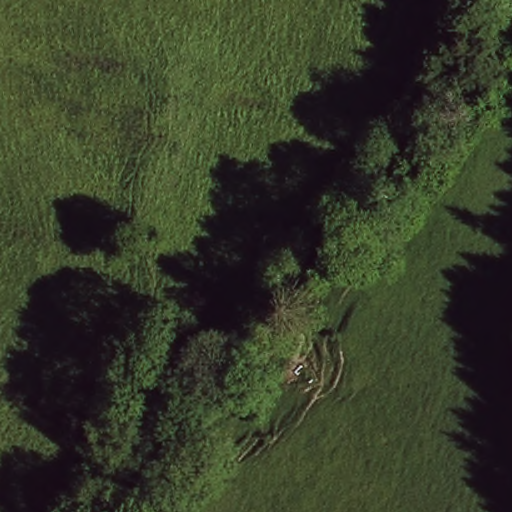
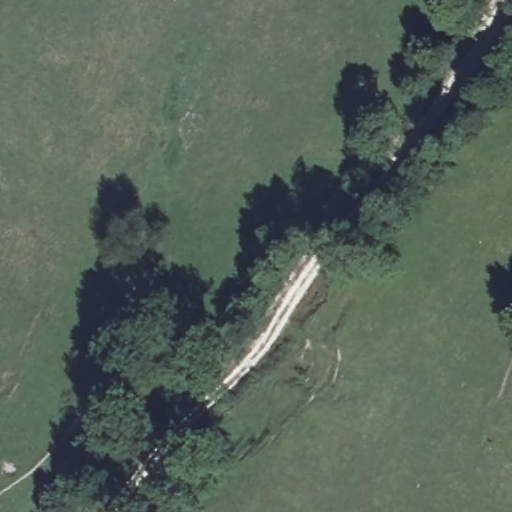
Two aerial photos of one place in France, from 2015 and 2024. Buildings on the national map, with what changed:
[]

